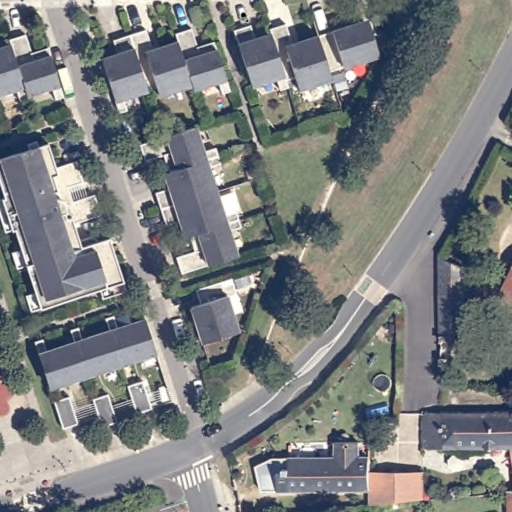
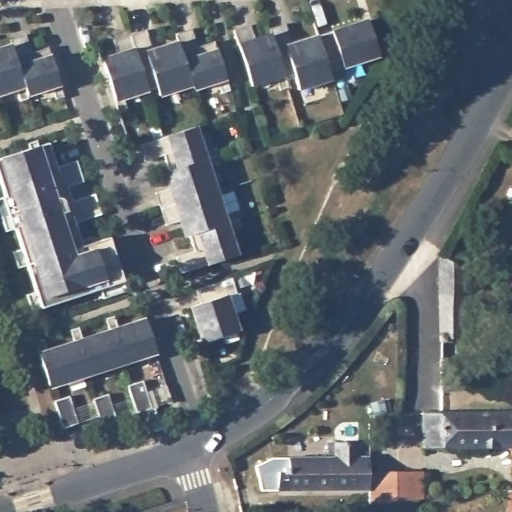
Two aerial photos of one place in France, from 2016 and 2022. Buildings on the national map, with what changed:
unchanged [(438,4),(437,0),(457,0),(458,3),(438,4)]
unchanged [(270,29),(286,24),(294,49),(301,47),(299,43),(319,36),(363,22),(369,39),(371,39),(376,57),(330,73),(332,81),(299,91),(295,79),(286,82),(288,89),(280,92),(276,80),(252,87),(234,31),(251,26),(257,44),(273,39),(270,29)]
unchanged [(146,36),(155,62),(162,60),(160,53),(178,48),(176,40),(191,35),(198,52),(214,47),(230,97),(222,100),(217,88),(194,96),(192,91),(159,102),(157,94),(124,105),(128,117),(119,120),(104,69),(120,64),(114,46),(131,41),(146,36)]
unchanged [(13,55),(11,45),(26,40),(33,58),(48,54),(65,103),(56,106),(52,94),(29,101),(30,104),(21,108),(16,95),(0,101),(0,59),(13,55)]
unchanged [(155,194),(174,188),(169,172),(163,156),(145,162),(140,146),(196,128),(204,152),(216,148),(218,156),(221,164),(209,168),(225,217),(236,213),(239,221),(241,228),(230,232),(237,256),(182,275),(176,258),(194,252),(189,237),(184,221),(166,227),(161,211),(155,194)]
unchanged [(26,295),(35,292),(27,266),(18,270),(12,253),(22,250),(15,230),(6,234),(0,215),(0,201),(5,199),(0,185),(0,160),(48,144),(56,167),(77,160),(85,181),(70,186),(75,200),(97,193),(104,213),(78,222),(84,239),(90,237),(94,236),(99,237),(101,238),(104,239),(112,236),(114,243),(127,281),(130,291),(107,298),(104,289),(41,309),(32,312),(26,295)]
unchanged [(464,270),(462,343),(439,342),(438,259),(464,270)]
unchanged [(512,294),(501,288),(512,267),(512,294)]
unchanged [(195,310),(191,296),(228,284),(233,299),(222,302),(233,336),(215,342),(214,340),(197,345),(187,313),(195,310)]
unchanged [(40,342),(47,340),(52,352),(80,343),(76,331),(84,328),(88,340),(114,332),(110,320),(118,317),(122,329),(150,320),(161,354),(143,360),(142,357),(124,363),(125,366),(109,371),(107,368),(90,374),(90,377),(72,382),(71,380),(54,386),(40,342)]
unchanged [(142,382),(152,409),(136,414),(127,387),(142,382)]
unchanged [(108,395),(117,423),(102,428),(93,400),(108,395)]
unchanged [(69,397),(78,425),(63,429),(54,402),(69,397)]
unchanged [(512,412),(512,445),(427,446),(427,412),(444,412),(512,412)]
unchanged [(423,480),(422,504),(396,506),(367,509),(368,494),(260,493),(255,468),(272,461),(335,461),(335,446),(358,446),(358,461),(368,462),(368,479),(396,480),(423,480)]

